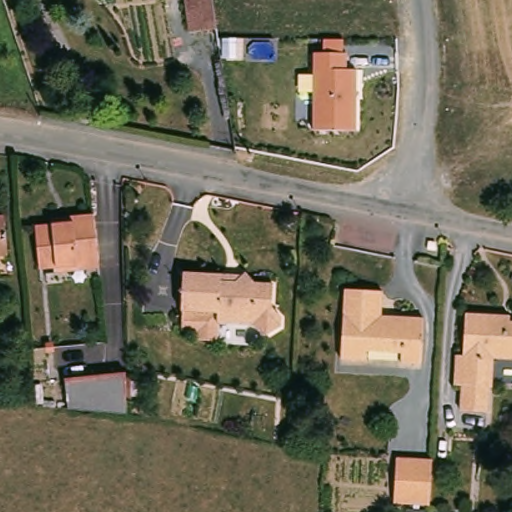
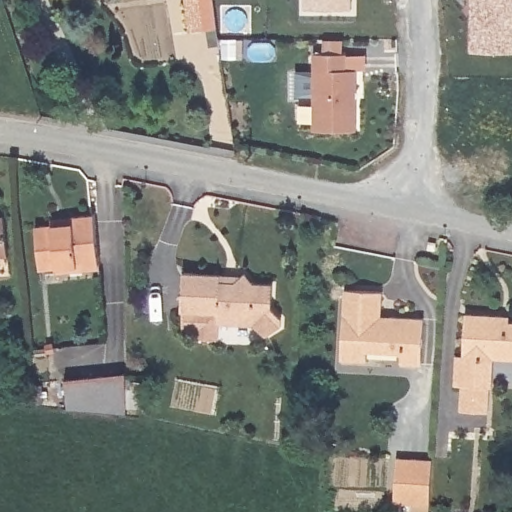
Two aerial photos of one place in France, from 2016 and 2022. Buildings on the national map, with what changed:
unchanged [(222,23),(195,27),(191,0),(219,0),(222,23)]
new [(353,8),(305,8),(305,0),(353,0),(353,8)]
new [(470,51),(470,0),(512,0),(512,51),(470,51)]
unchanged [(314,54),(348,54),(348,70),(357,70),(356,130),(312,129),(314,54)]
unchanged [(56,272),(56,267),(40,269),(36,226),(53,224),(52,217),(71,215),(71,216),(94,214),(99,263),(99,268),(56,272)]
unchanged [(0,256),(0,215),(5,215),(8,255),(0,256)]
unchanged [(436,256),(424,254),(426,247),(437,249),(436,256)]
unchanged [(260,277),(278,278),(277,302),(287,312),(286,321),(271,331),(258,320),(224,318),(223,336),(202,335),(203,327),(187,326),(187,306),(189,267),(226,269),(248,271),(251,267),(260,277)]
unchanged [(427,363),(406,362),(406,352),(372,351),(371,361),(346,359),(350,289),(388,291),(386,317),(429,318),(427,363)]
unchanged [(499,358),(497,387),(494,387),(493,412),(466,410),(467,385),(459,385),(461,355),(468,355),(471,313),(508,315),(512,315),(512,359),(499,358)]
unchanged [(127,414),(81,410),(72,409),(68,409),(64,381),(126,372),(127,414)]
unchanged [(395,500),(398,455),(433,457),(430,502),(395,500)]

